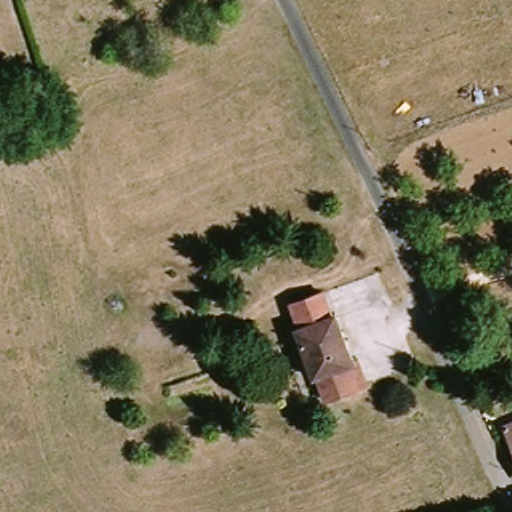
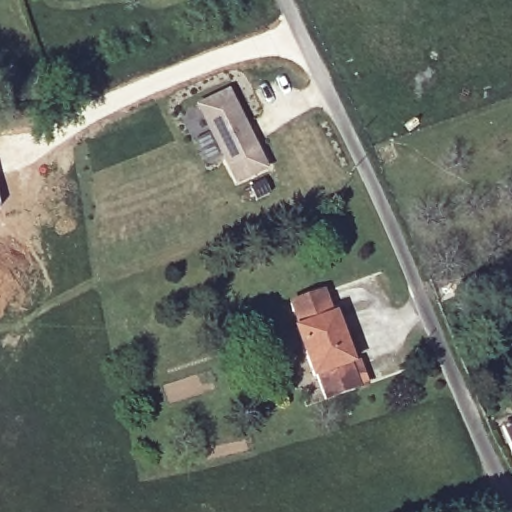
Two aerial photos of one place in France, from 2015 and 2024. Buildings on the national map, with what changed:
new [(227,92),(264,170),(234,184),(198,106),(227,92)]
unchanged [(327,406),(318,383),(314,385),(294,332),(299,330),(291,308),(323,296),(332,317),(337,316),(357,368),(352,369),(361,393),(327,406)]
unchanged [(512,422),(512,446),(504,425),(512,422)]

